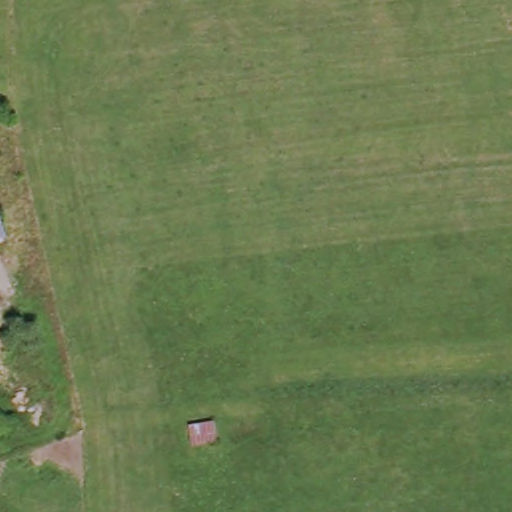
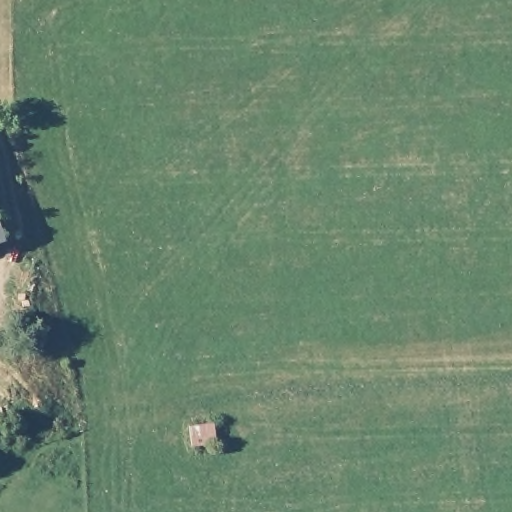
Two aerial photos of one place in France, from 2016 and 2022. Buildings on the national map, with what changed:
unchanged [(8,247),(0,250),(0,225),(8,247)]

